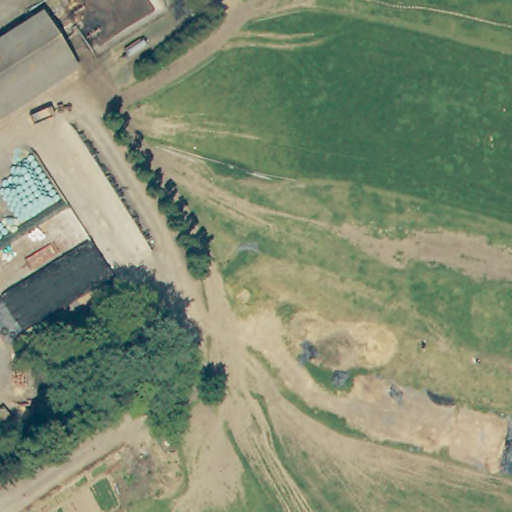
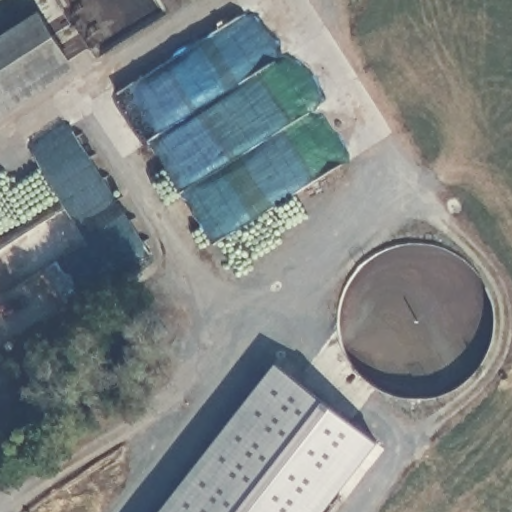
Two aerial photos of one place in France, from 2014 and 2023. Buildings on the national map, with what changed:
unchanged [(47,18),(77,65),(0,113),(0,49),(47,18)]
new [(160,512),(275,363),(378,445),(326,512),(160,512)]
unchanged [(0,480),(0,474),(3,478),(0,480)]

